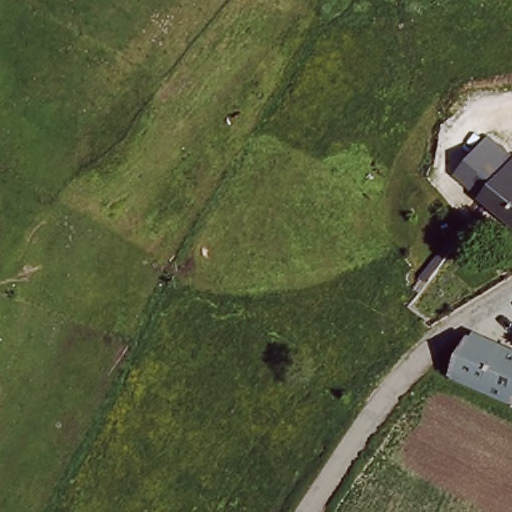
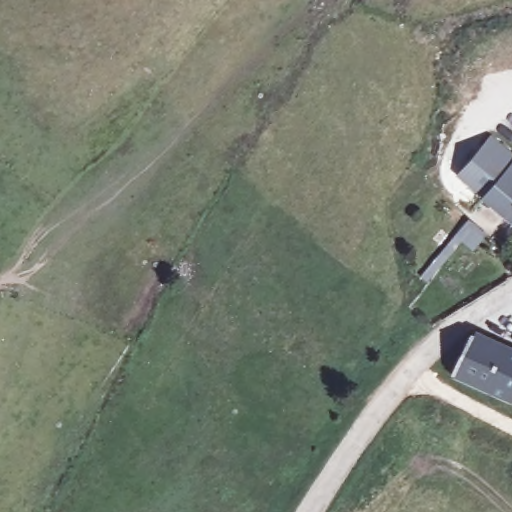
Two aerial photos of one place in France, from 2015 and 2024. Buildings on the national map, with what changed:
unchanged [(475,192),(477,190),(470,184),(494,156),(500,162),(510,151),(512,153),(512,224),(475,192)]
unchanged [(512,353),(512,400),(512,401),(452,376),(470,338),(472,336),(512,353)]

